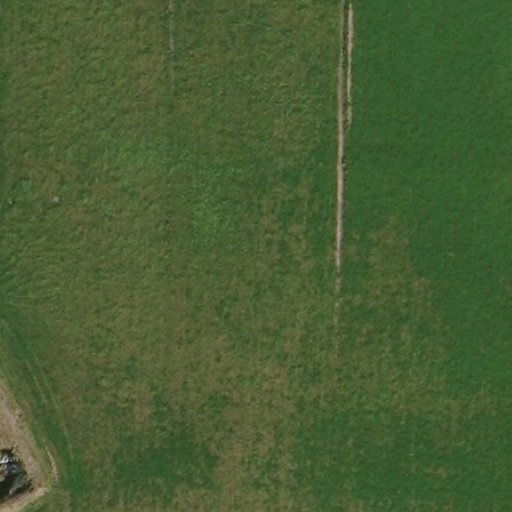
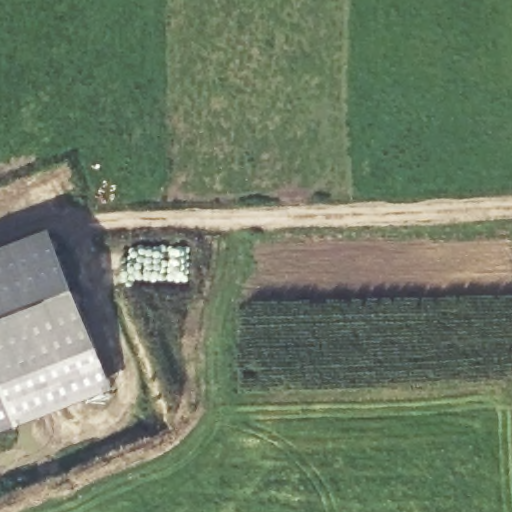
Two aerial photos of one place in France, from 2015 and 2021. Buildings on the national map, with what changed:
new [(0,389),(0,250),(48,230),(97,350),(0,389)]
new [(0,394),(0,392),(1,394),(0,394)]

